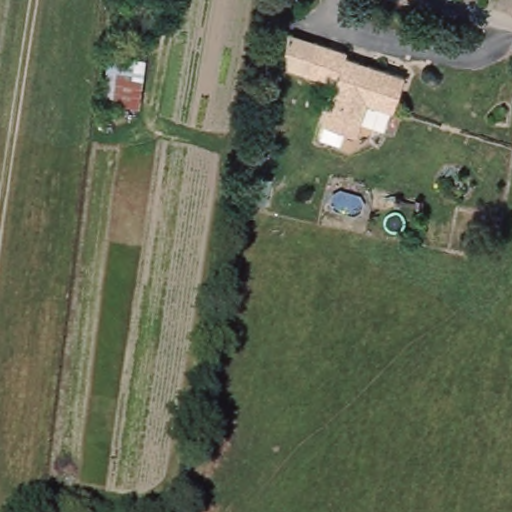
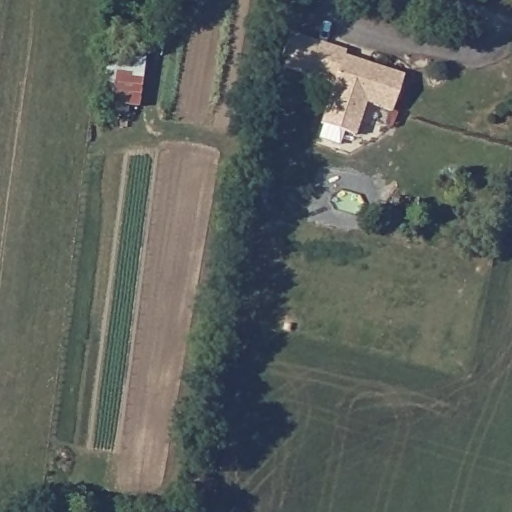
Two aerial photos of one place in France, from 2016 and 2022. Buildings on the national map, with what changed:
unchanged [(350,47),(348,52),(407,73),(395,108),(369,99),(357,131),(323,119),(337,78),(308,68),(319,37),(350,47)]
unchanged [(146,59),(140,110),(100,105),(107,54),(146,59)]

